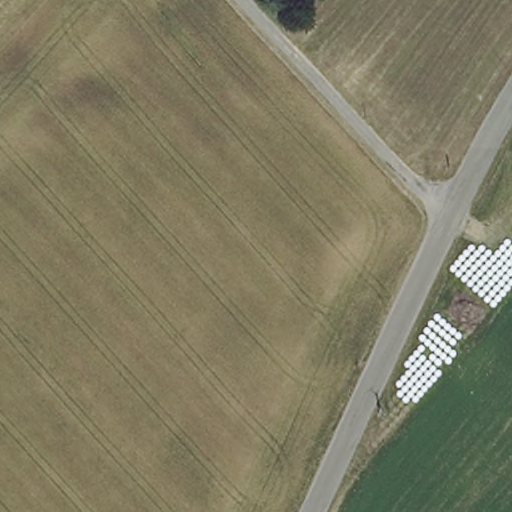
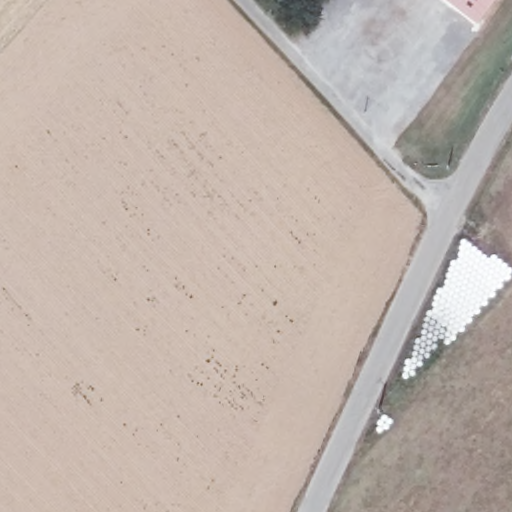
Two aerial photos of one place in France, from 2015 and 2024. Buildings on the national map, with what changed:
new [(475,27),(439,0),(495,0),(475,27)]

